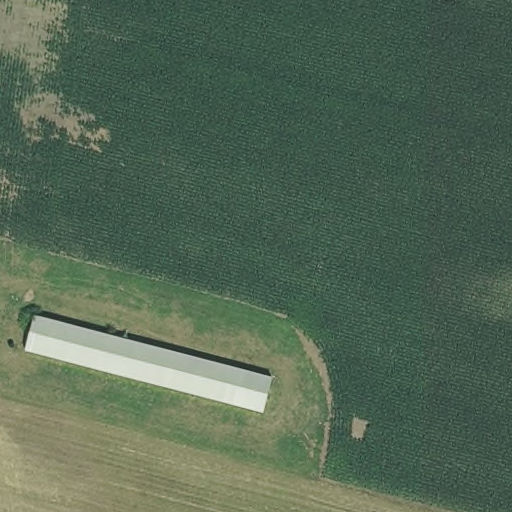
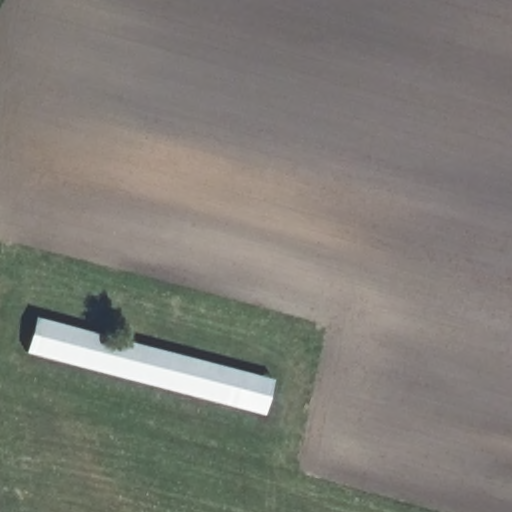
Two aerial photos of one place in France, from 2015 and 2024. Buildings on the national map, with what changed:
unchanged [(272,376),(260,420),(22,357),(33,313),(272,376)]

